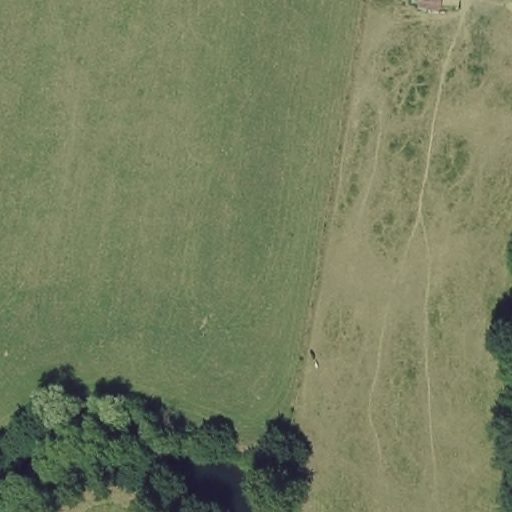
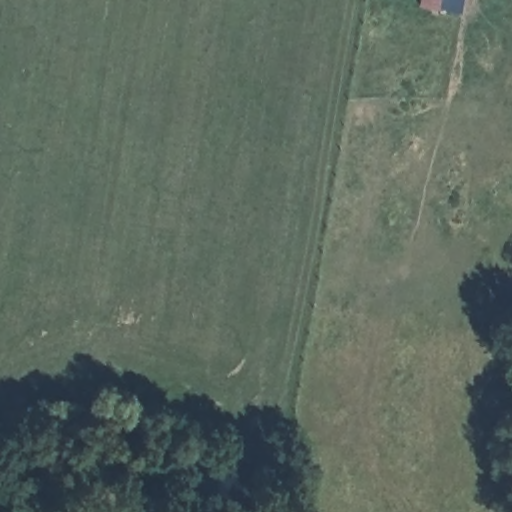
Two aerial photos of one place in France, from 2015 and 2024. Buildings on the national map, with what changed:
unchanged [(432,11),(414,7),(416,0),(434,0),(432,11)]

